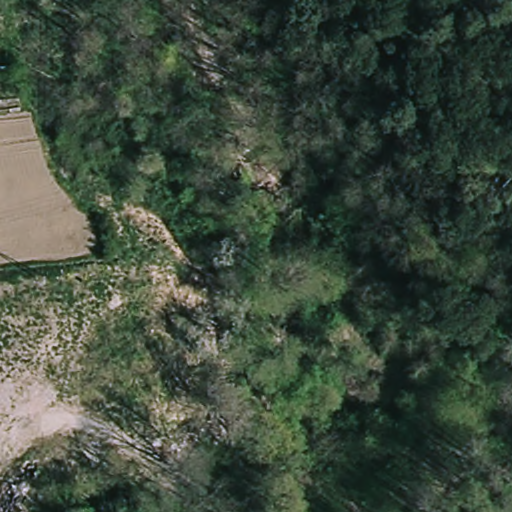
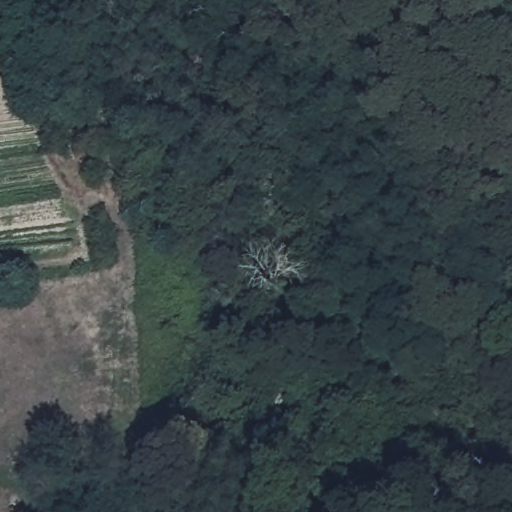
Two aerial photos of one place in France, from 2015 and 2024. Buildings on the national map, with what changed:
[]

